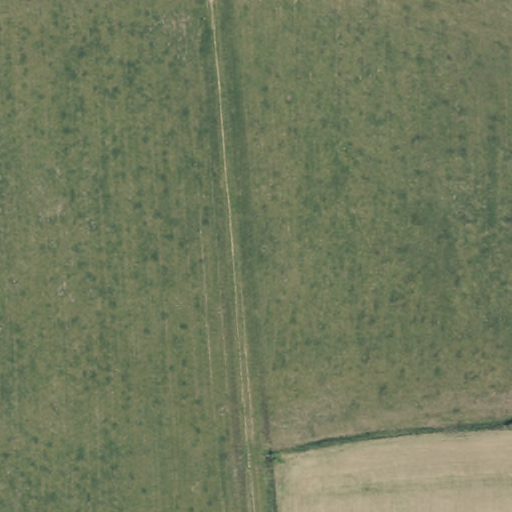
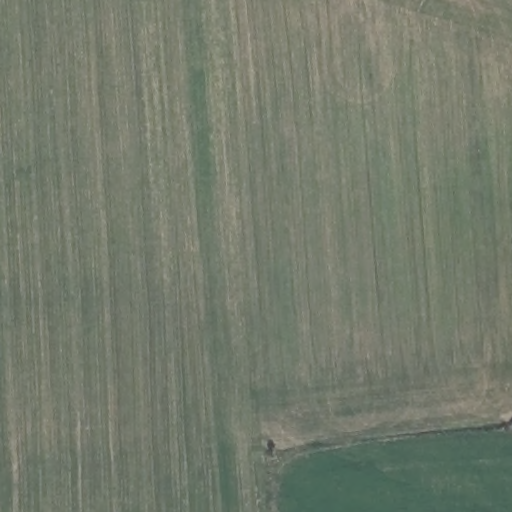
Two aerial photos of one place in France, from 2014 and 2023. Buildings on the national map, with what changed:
[]

